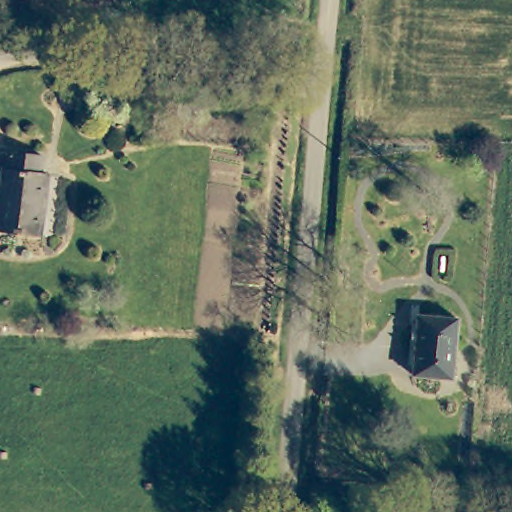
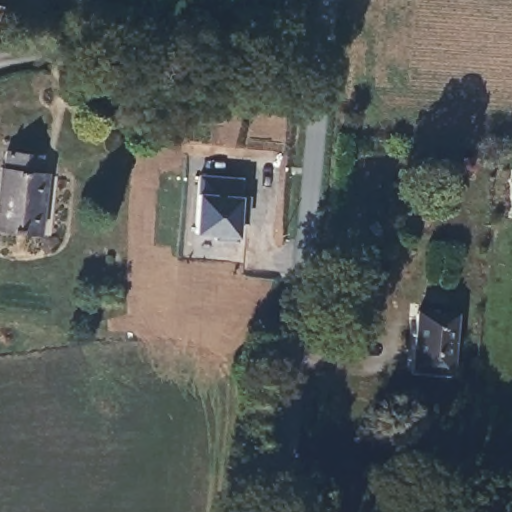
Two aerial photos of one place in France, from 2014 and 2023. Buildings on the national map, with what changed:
unchanged [(37,237),(0,233),(0,174),(1,174),(3,156),(37,160),(35,178),(46,179),(37,237)]
new [(200,179),(241,182),(240,199),(249,200),(247,220),(239,219),(237,244),(216,243),(216,238),(196,237),(200,179)]
unchanged [(450,380),(410,377),(416,317),(455,320),(450,380)]

